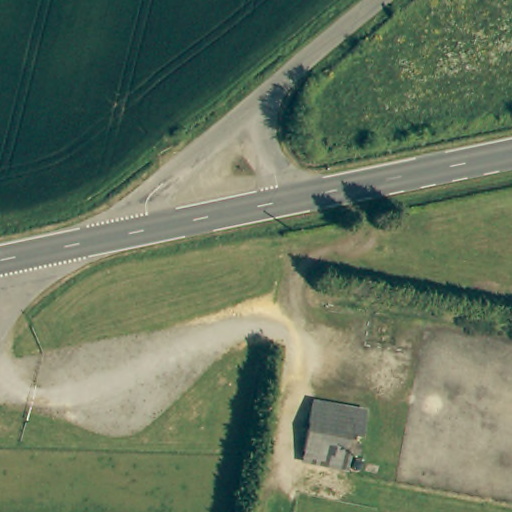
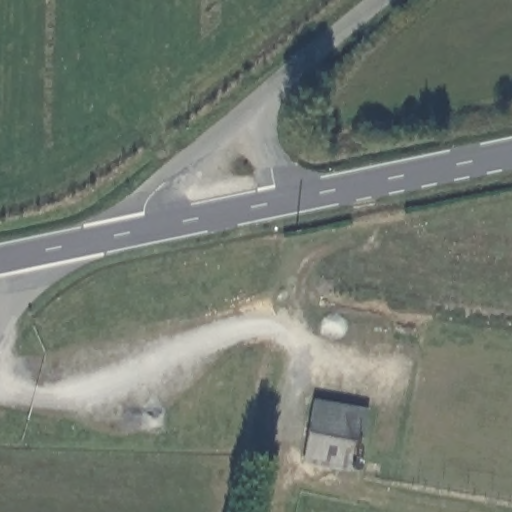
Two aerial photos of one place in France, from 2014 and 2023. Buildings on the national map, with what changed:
unchanged [(308,402),(363,411),(359,436),(351,435),(350,444),(357,445),(355,456),(349,455),(348,468),(298,460),(308,402)]

